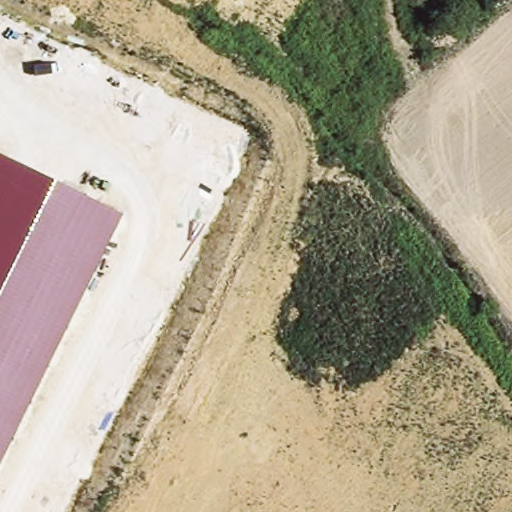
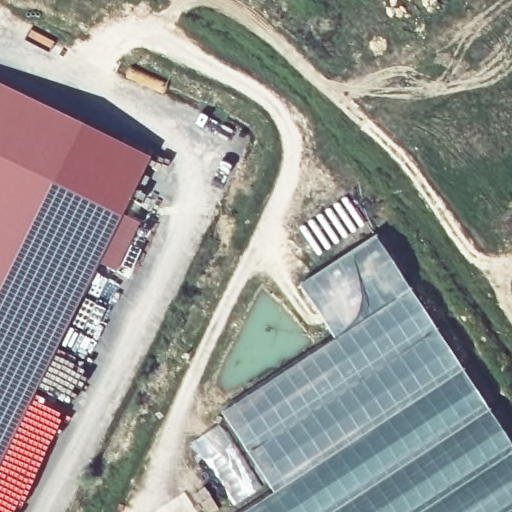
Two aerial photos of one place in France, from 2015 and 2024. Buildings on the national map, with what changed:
demolished [(512,49),(512,290),(403,122),(512,49)]
new [(123,216),(0,156),(0,85),(148,158),(123,216)]
unchanged [(123,216),(0,466),(0,156),(123,216)]
new [(274,494),(223,413),(336,341),(301,286),(376,236),(512,445),(512,512),(246,512),(274,494)]

